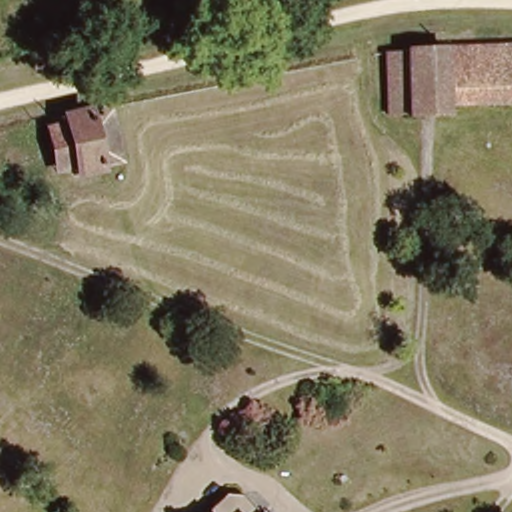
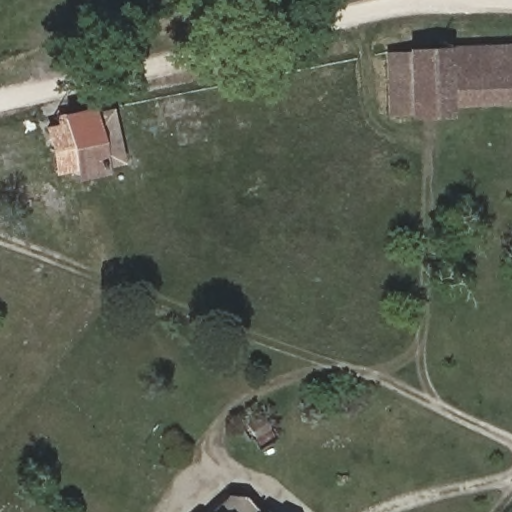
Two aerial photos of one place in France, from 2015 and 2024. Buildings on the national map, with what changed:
unchanged [(390,48),(448,47),(512,45),(512,105),(450,107),(450,115),(388,115),(390,48)]
unchanged [(36,178),(32,130),(99,116),(109,165),(36,178)]
unchanged [(263,512),(207,512),(235,485),(263,512)]

